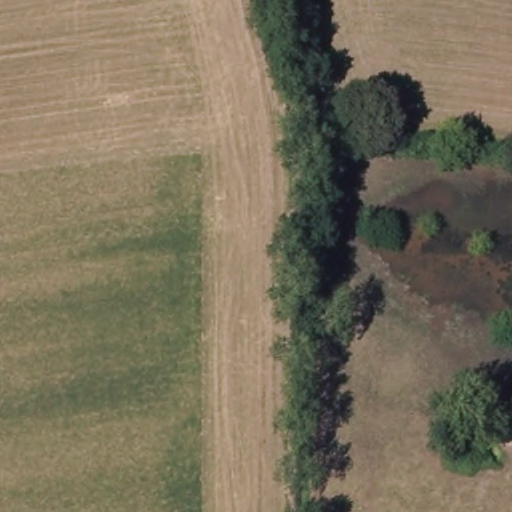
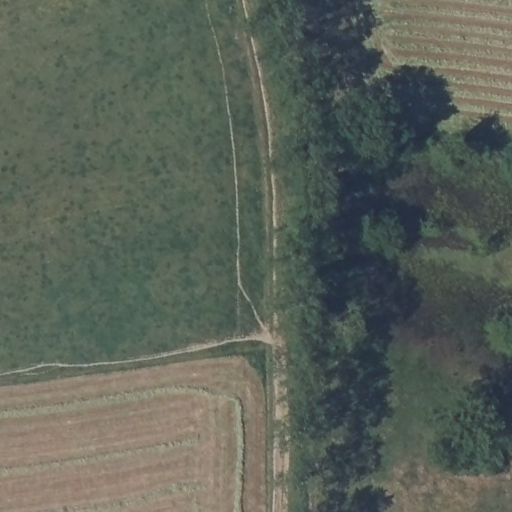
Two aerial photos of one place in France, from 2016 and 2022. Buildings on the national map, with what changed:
[]

